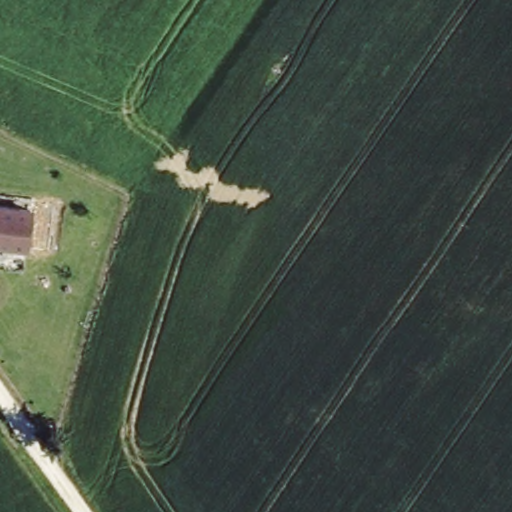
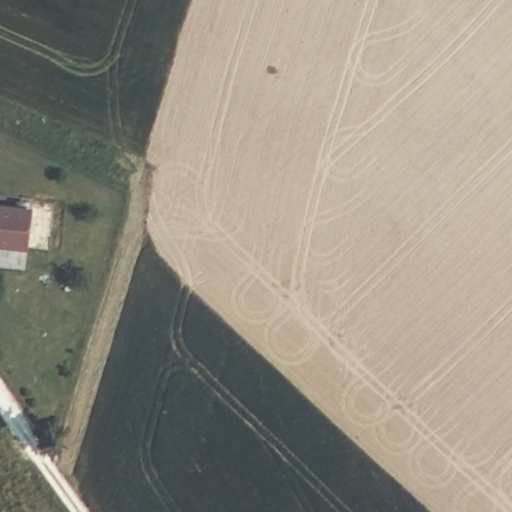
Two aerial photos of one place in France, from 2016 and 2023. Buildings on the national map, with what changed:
unchanged [(30,210),(24,253),(0,250),(0,209),(30,210)]

